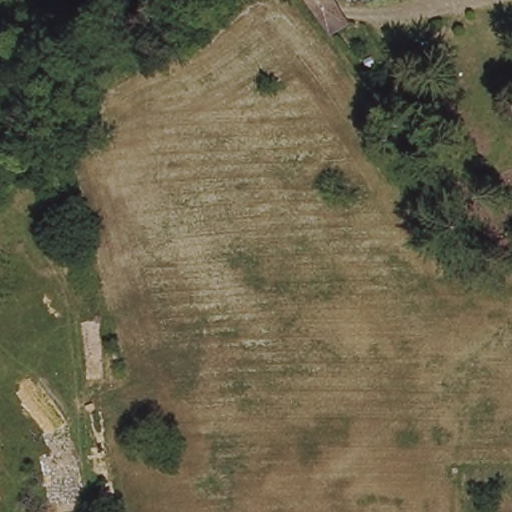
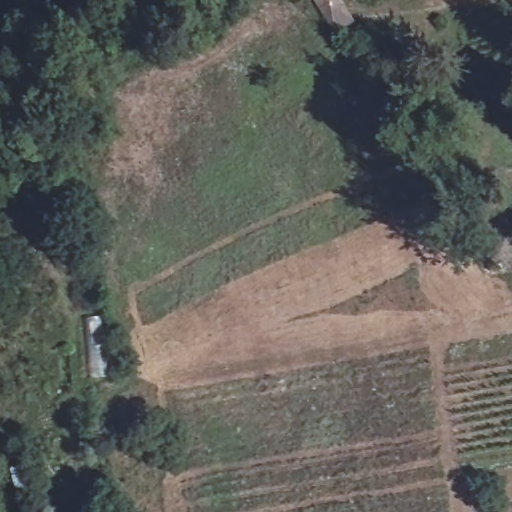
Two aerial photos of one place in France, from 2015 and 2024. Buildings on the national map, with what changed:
unchanged [(305,0),(330,0),(346,26),(326,32),(305,0)]

